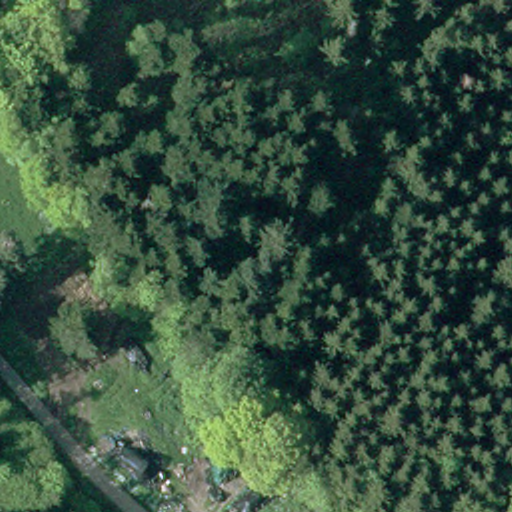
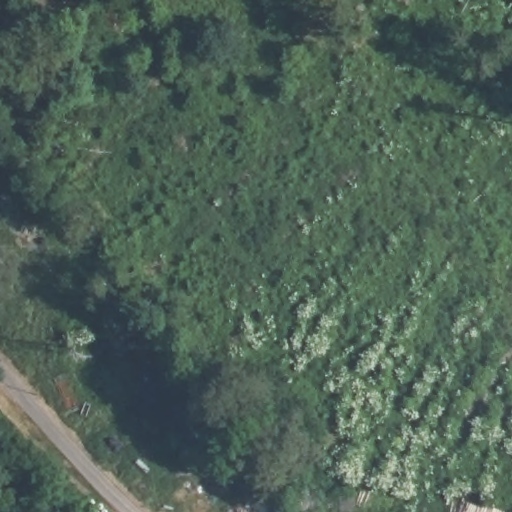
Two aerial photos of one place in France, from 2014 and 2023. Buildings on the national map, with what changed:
[]

